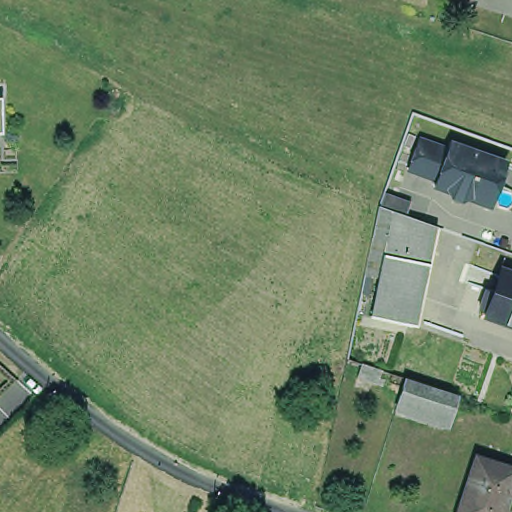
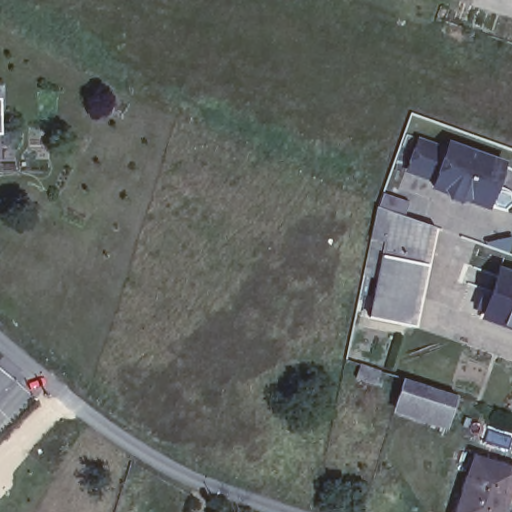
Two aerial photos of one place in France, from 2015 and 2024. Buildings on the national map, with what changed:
unchanged [(452,151),(455,144),(509,164),(494,206),(472,198),(465,202),(454,197),(450,190),(440,186),(441,181),(413,171),(424,140),(452,151)]
unchanged [(378,324),(386,284),(372,281),(388,212),(400,216),(439,230),(431,270),(419,331),(378,324)]
unchanged [(492,311),(482,307),(487,294),(497,297),(505,272),(512,274),(512,325),(490,317),(492,311)]
unchanged [(359,365),(380,372),(375,385),(355,377),(359,365)]
unchanged [(455,397),(446,423),(394,406),(402,380),(455,397)]
unchanged [(512,465),(512,469),(505,489),(512,492),(512,493),(505,511),(499,509),(498,512),(454,512),(455,510),(475,452),(512,465)]

